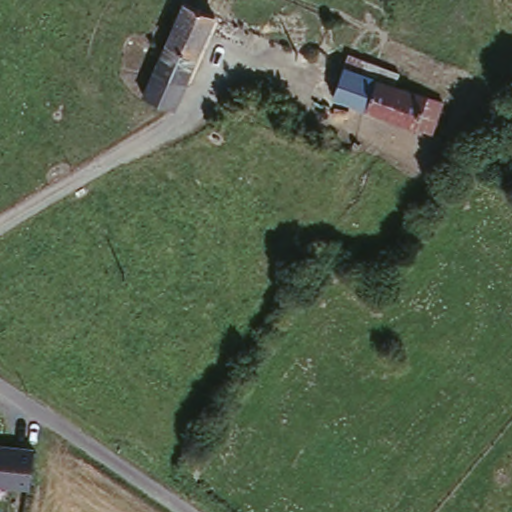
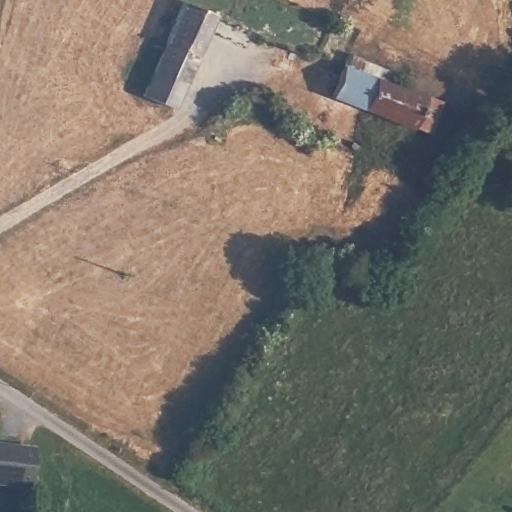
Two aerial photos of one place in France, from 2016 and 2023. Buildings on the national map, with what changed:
unchanged [(147,100),(157,72),(165,47),(185,8),(216,21),(176,113),(147,100)]
unchanged [(398,75),(395,85),(443,106),(430,140),(332,99),(348,55),(398,75)]
unchanged [(37,443),(34,489),(0,485),(0,439),(37,443)]

